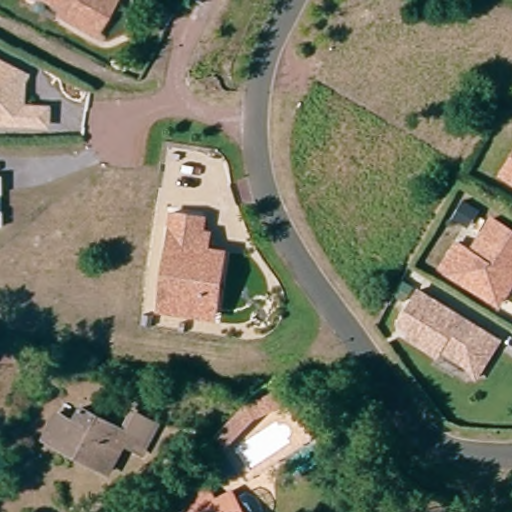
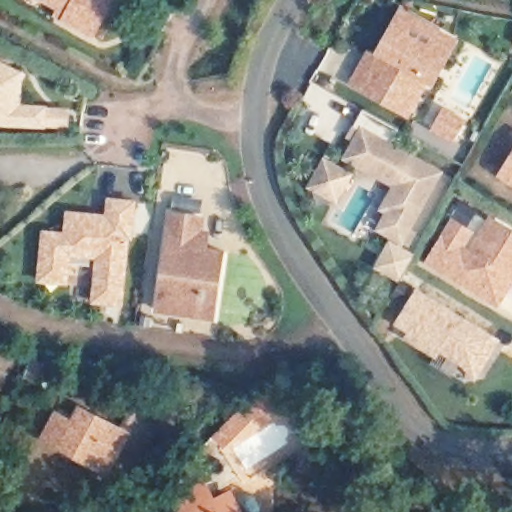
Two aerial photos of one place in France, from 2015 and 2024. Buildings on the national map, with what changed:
unchanged [(56,12),(60,5),(50,0),(112,0),(93,32),(63,16),(56,12)]
new [(369,56),(380,36),(384,30),(396,9),(449,39),(438,59),(427,53),(406,91),(383,79),(374,96),(346,81),(362,52),(369,56)]
new [(383,79),(406,91),(427,53),(438,59),(426,80),(420,76),(401,111),(374,96),(383,79)]
unchanged [(2,62),(23,72),(20,79),(19,104),(45,104),(45,121),(0,120),(0,61),(2,62)]
unchanged [(512,90),(507,87),(512,80),(512,90)]
new [(357,127),(349,124),(358,107),(393,126),(384,142),(434,170),(396,238),(375,226),(384,210),(378,206),(391,182),(342,155),(357,127)]
new [(320,157),(345,171),(332,196),(307,182),(320,157)]
unchanged [(512,160),(512,185),(501,178),(512,160)]
unchanged [(0,174),(1,225),(0,226),(0,174)]
new [(95,257),(71,255),(69,285),(38,282),(41,229),(65,231),(66,210),(105,215),(107,197),(137,200),(133,240),(129,240),(124,306),(92,303),(95,257)]
unchanged [(466,230),(452,221),(463,204),(477,212),(466,230)]
unchanged [(205,215),(204,227),(212,229),(209,246),(226,249),(217,320),(156,311),(169,210),(205,215)]
unchanged [(470,289),(442,272),(457,246),(471,255),(491,221),(512,234),(512,287),(499,307),(470,289)]
unchanged [(413,291),(406,304),(395,298),(402,285),(413,291)]
unchanged [(464,366),(442,352),(438,358),(408,341),(413,334),(400,326),(419,294),(495,340),(501,343),(478,381),(464,366)]
unchanged [(29,360),(44,366),(39,380),(24,374),(29,360)]
unchanged [(118,433),(129,413),(149,423),(133,455),(117,446),(103,473),(85,465),(38,440),(49,416),(64,425),(73,409),(118,433)]
unchanged [(236,411),(247,422),(222,447),(211,436),(236,411)]
unchanged [(162,497),(197,476),(210,497),(221,490),(234,512),(171,512),(162,497)]

